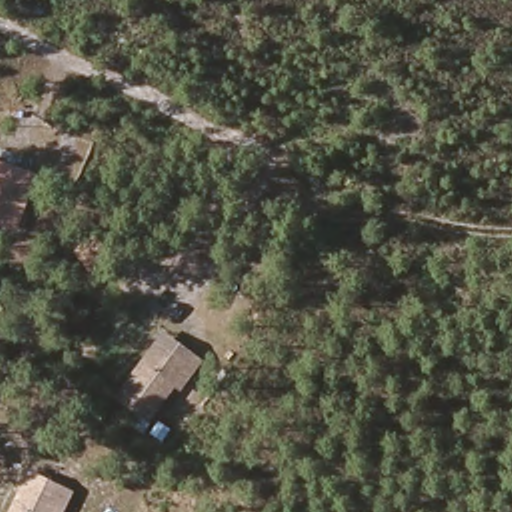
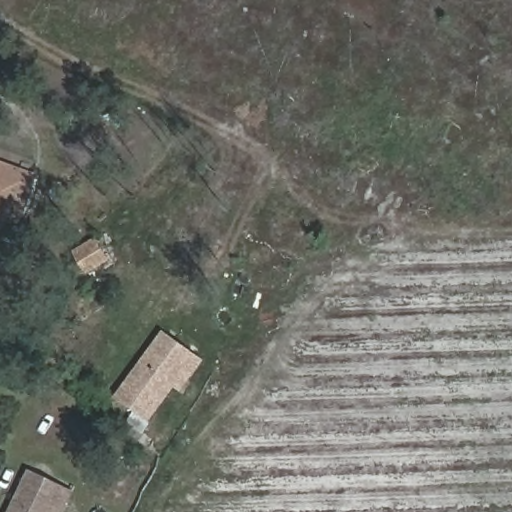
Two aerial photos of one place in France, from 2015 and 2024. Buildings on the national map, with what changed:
unchanged [(14,236),(0,229),(0,166),(39,186),(14,236)]
unchanged [(199,358),(170,423),(136,408),(165,343),(199,358)]
unchanged [(73,498),(66,512),(25,512),(39,483),(73,498)]

